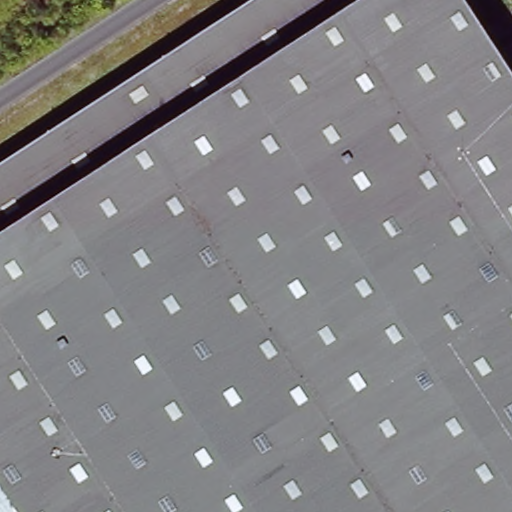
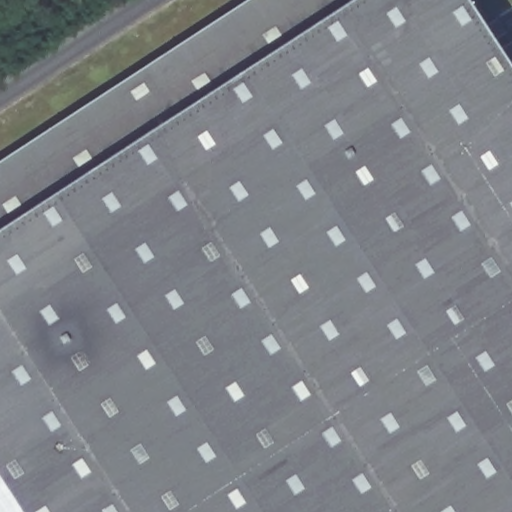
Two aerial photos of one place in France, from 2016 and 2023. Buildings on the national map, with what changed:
unchanged [(512,70),(512,512),(0,512),(0,164),(253,0),(466,0),(512,70)]

